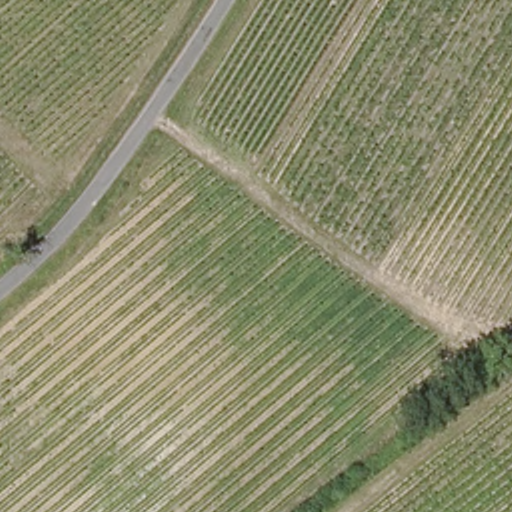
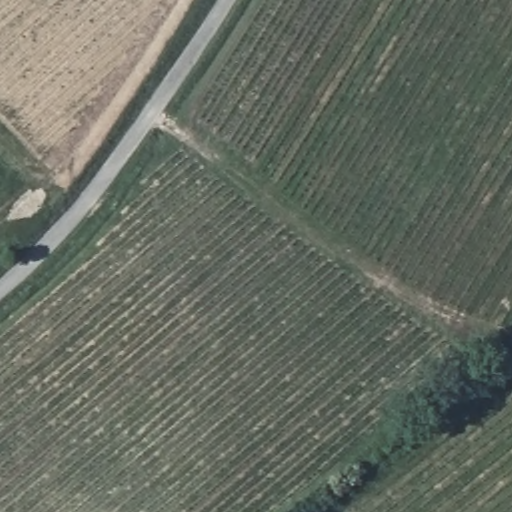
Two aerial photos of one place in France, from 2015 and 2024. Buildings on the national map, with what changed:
unchanged [(478,370),(479,357),(500,362),(499,372),(493,371),(493,385),(477,384),(478,370)]

